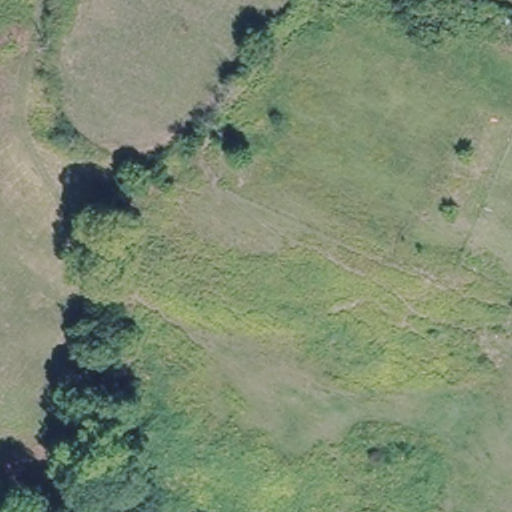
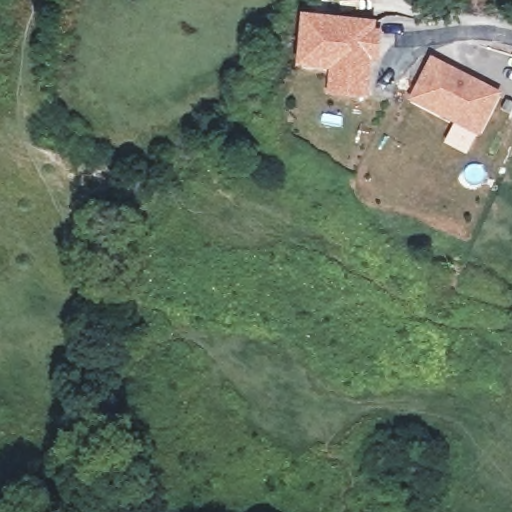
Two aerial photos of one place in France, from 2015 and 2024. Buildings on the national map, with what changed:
new [(375,21),(375,29),(382,29),(379,61),(371,61),(368,96),(326,94),(328,71),(296,67),(300,13),(375,21)]
new [(502,91),(478,135),(408,99),(432,56),(502,91)]

